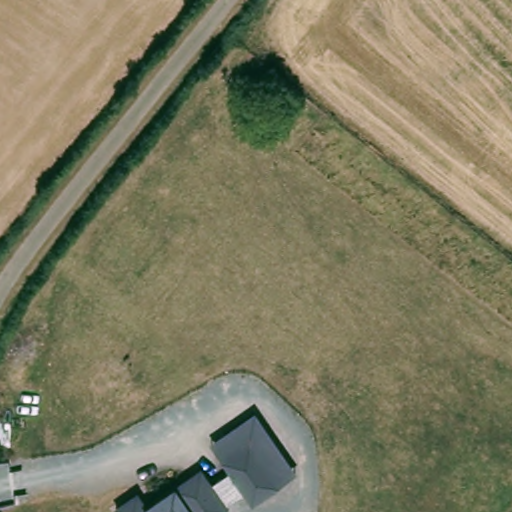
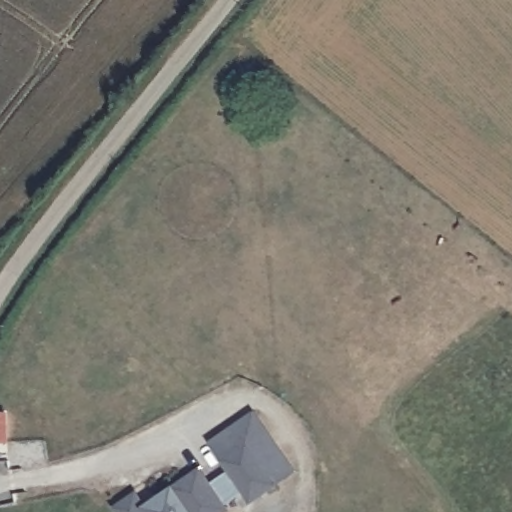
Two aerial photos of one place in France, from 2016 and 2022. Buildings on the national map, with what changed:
unchanged [(117,504),(139,490),(147,502),(177,482),(202,466),(212,480),(232,467),(225,456),(252,438),(281,485),(254,502),(247,491),(227,503),(232,510),(229,512),(122,512),(117,504)]

